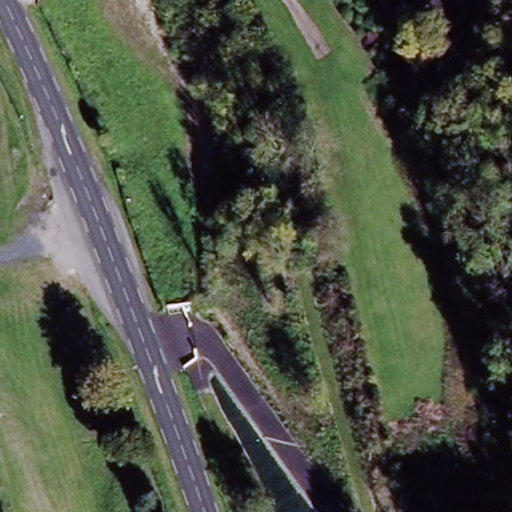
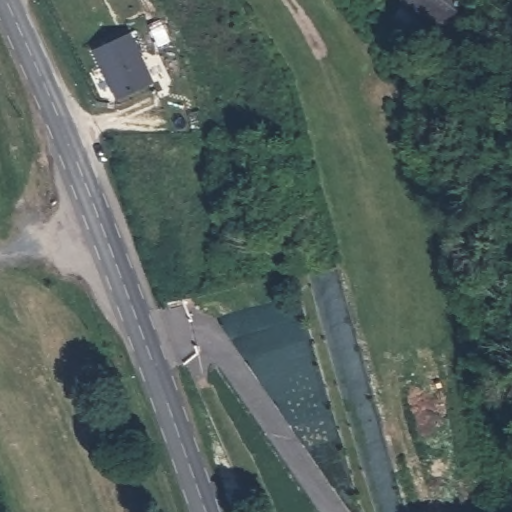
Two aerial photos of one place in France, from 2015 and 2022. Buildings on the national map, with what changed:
unchanged [(391,0),(448,0),(448,17),(413,29),(390,10),(391,0)]
new [(133,36),(152,87),(117,101),(98,50),(133,36)]

